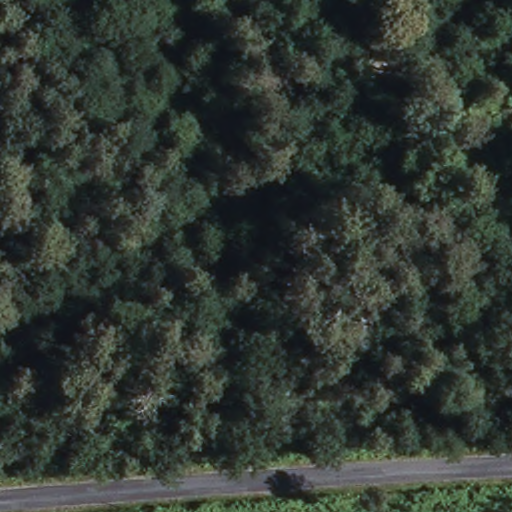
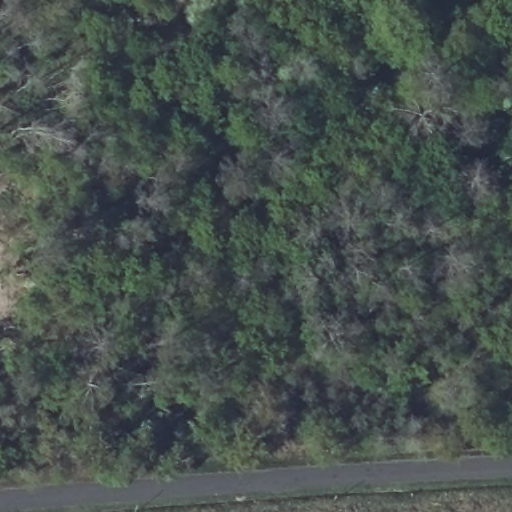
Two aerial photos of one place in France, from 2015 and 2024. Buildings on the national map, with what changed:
[]

